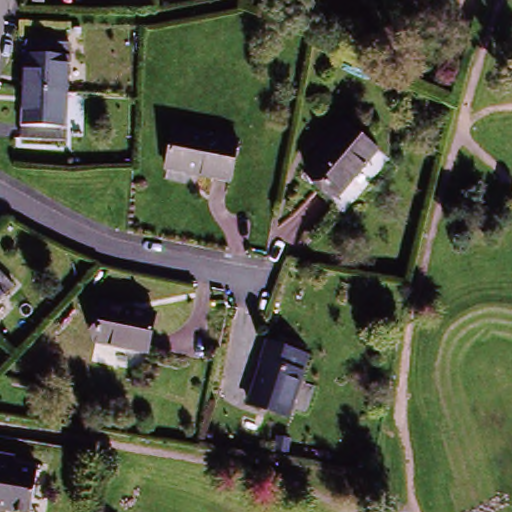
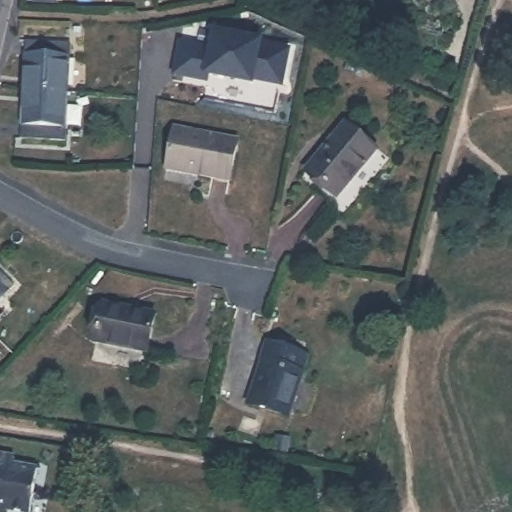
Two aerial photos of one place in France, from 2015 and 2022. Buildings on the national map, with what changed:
new [(282,89),(254,83),(253,88),(210,79),(209,85),(175,77),(182,46),(212,52),(216,35),(262,45),(263,41),(292,48),(282,89)]
unchanged [(22,49),(66,51),(64,99),(20,97),(22,49)]
unchanged [(17,146),(20,97),(64,99),(61,148),(17,146)]
unchanged [(234,144),(225,185),(162,171),(170,130),(234,144)]
unchanged [(370,161),(332,205),(302,180),(342,135),(370,161)]
unchanged [(14,284),(0,298),(0,271),(14,284)]
unchanged [(144,315),(138,352),(86,344),(92,307),(144,315)]
unchanged [(284,418),(247,408),(259,364),(255,363),(259,345),(290,353),(296,355),(291,373),(295,374),(284,418)]
unchanged [(30,512),(7,512),(0,511),(0,457),(13,460),(12,467),(37,471),(30,512)]

